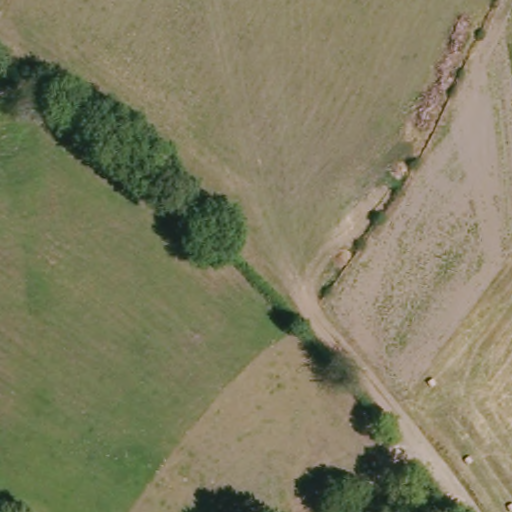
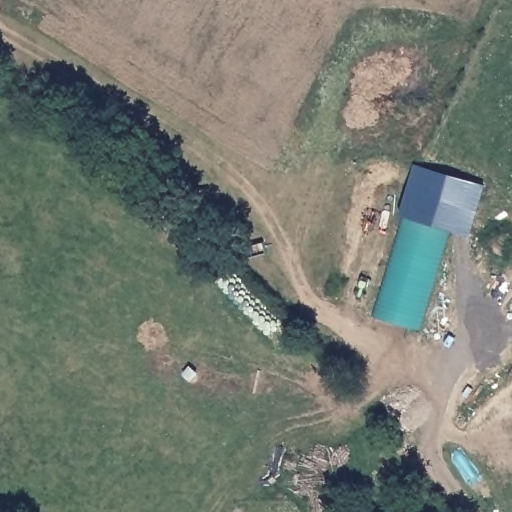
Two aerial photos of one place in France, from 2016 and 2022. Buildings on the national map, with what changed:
new [(413,163),(485,184),(470,235),(447,228),(402,215),(399,214),(413,163)]
new [(377,315),(402,215),(447,228),(420,327),(377,315)]

